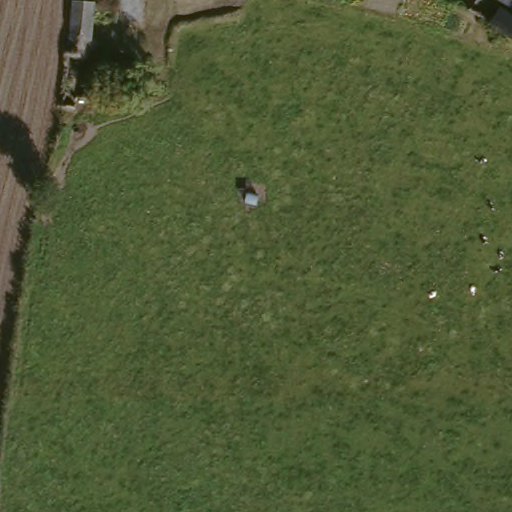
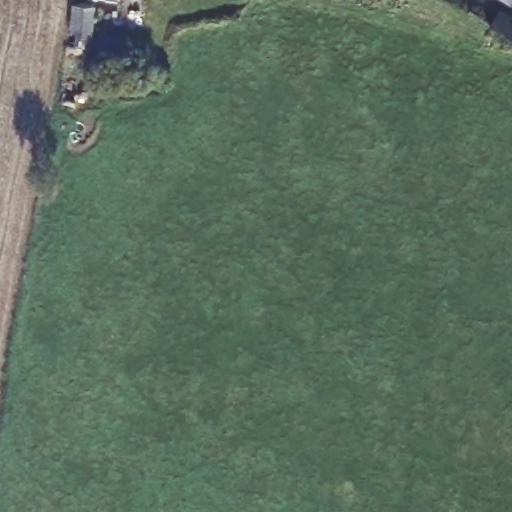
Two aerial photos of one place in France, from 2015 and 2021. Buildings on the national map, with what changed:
unchanged [(91,54),(68,47),(79,0),(90,0),(101,2),(103,3),(91,54)]
unchanged [(512,4),(503,0),(512,0),(512,4)]
unchanged [(479,42),(485,23),(496,30),(502,33),(512,34),(512,50),(506,49),(479,42)]

